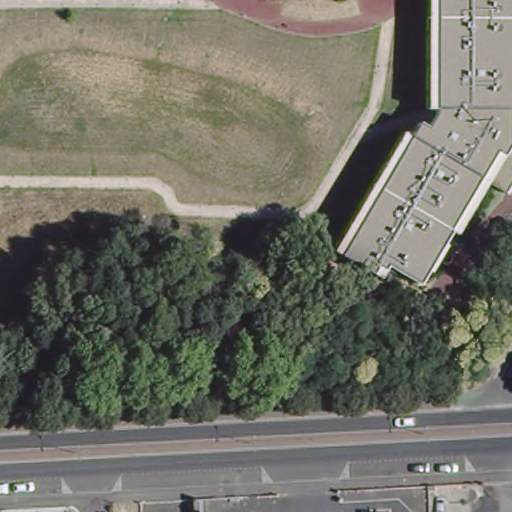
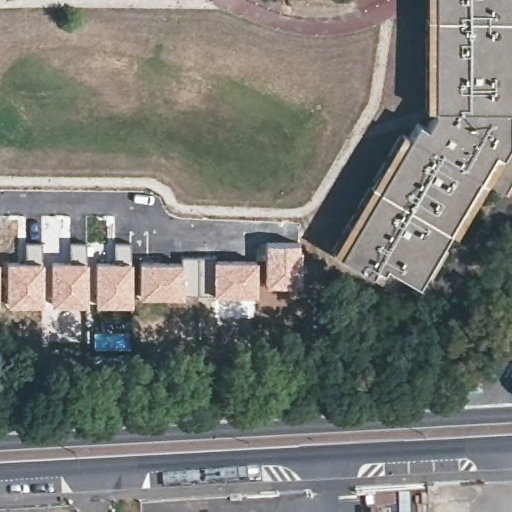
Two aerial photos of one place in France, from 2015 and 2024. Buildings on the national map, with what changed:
unchanged [(512,110),(512,124),(504,153),(424,282),(390,263),(382,279),(334,252),(400,134),(410,136),(427,106),(427,0),(512,0),(512,110)]
new [(265,241),(300,242),(301,285),(264,285),(265,241)]
new [(24,259),(25,242),(42,242),(42,259),(42,304),(5,303),(7,259),(24,259)]
new [(70,259),(70,242),(85,242),(85,259),(87,260),(87,304),(50,303),(50,260),(70,259)]
new [(212,294),(183,293),(183,260),(180,257),(212,258),(212,294)]
new [(257,259),(257,294),(212,294),(212,258),(257,259)]
new [(131,260),(131,304),(95,303),(94,260),(131,260)]
new [(139,261),(183,260),(183,295),(139,294),(139,261)]

